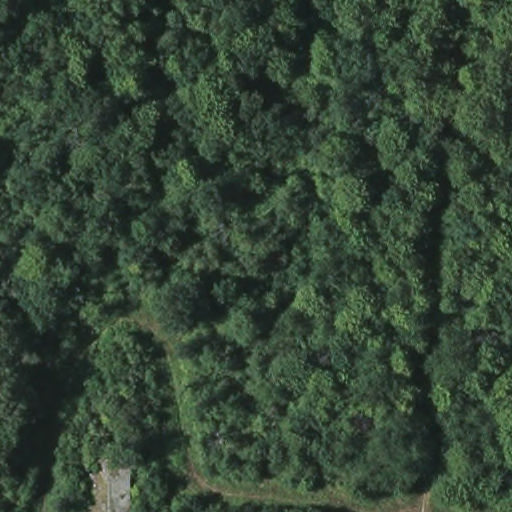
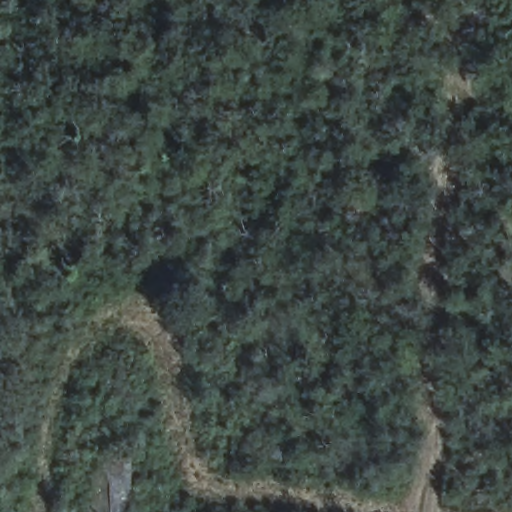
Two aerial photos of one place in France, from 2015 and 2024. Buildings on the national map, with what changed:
[]

